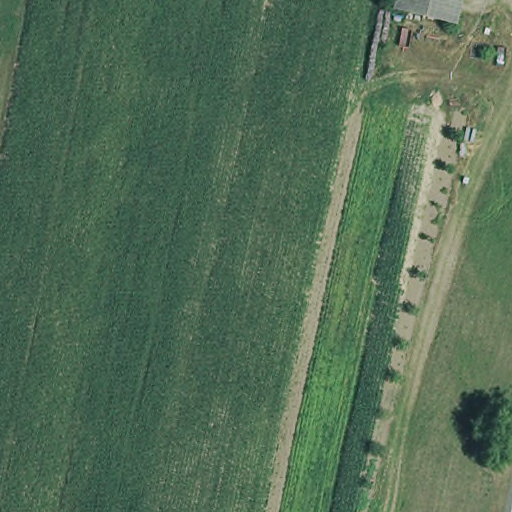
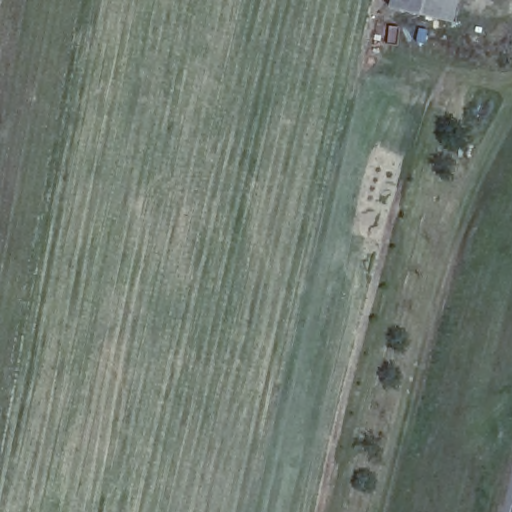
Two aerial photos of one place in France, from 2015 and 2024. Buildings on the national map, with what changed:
unchanged [(398,0),(460,0),(457,15),(429,7),(398,0)]

